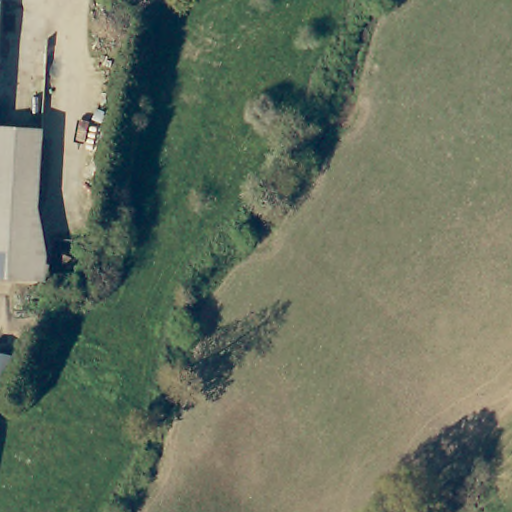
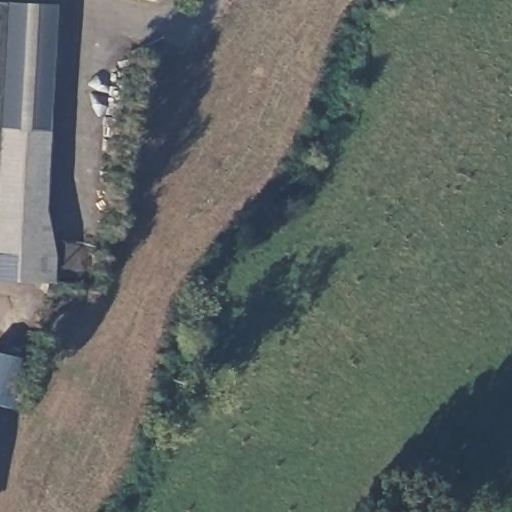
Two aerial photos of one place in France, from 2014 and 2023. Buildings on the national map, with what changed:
unchanged [(2,0),(0,42),(0,0),(2,0)]
new [(52,2),(46,130),(0,127),(0,42),(2,0),(52,2)]
unchanged [(46,130),(40,209),(50,255),(48,282),(7,281),(0,280),(0,127),(46,130)]
unchanged [(20,364),(9,416),(0,414),(0,367),(20,364)]

